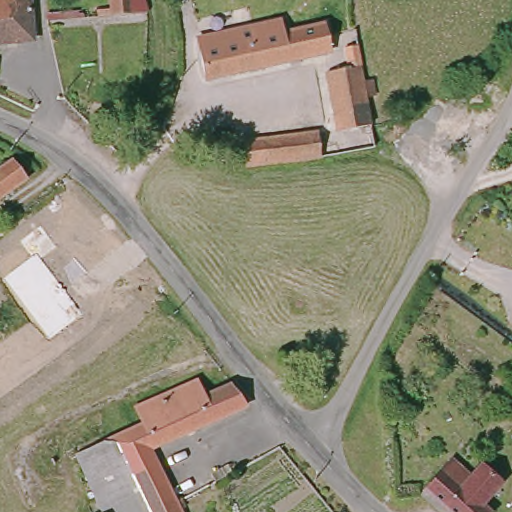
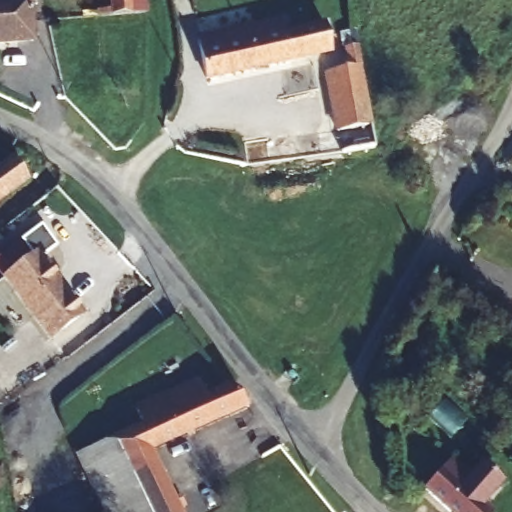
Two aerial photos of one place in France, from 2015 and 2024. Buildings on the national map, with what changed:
unchanged [(113,23),(112,0),(134,0),(134,22),(113,23)]
unchanged [(26,1),(29,44),(0,44),(0,1),(26,1)]
unchanged [(288,26),(330,26),(331,39),(331,61),(201,63),(199,28),(216,28),(216,26),(261,26),(288,26)]
unchanged [(326,71),(361,64),(370,122),(338,131),(326,71)]
unchanged [(321,156),(246,166),(241,138),(317,129),(321,156)]
unchanged [(8,163),(22,182),(0,197),(0,168),(8,163)]
new [(56,248),(43,257),(85,313),(50,342),(0,278),(30,255),(20,243),(40,227),(56,248)]
unchanged [(247,403),(153,449),(181,504),(183,508),(175,512),(135,512),(101,447),(158,419),(149,403),(199,377),(209,392),(229,382),(247,403)]
unchanged [(135,512),(106,512),(78,457),(101,447),(135,512)]
unchanged [(451,461),(470,480),(479,470),(498,489),(492,496),(482,511),(483,512),(445,512),(429,496),(451,461)]
unchanged [(183,508),(186,512),(175,512),(183,508)]

